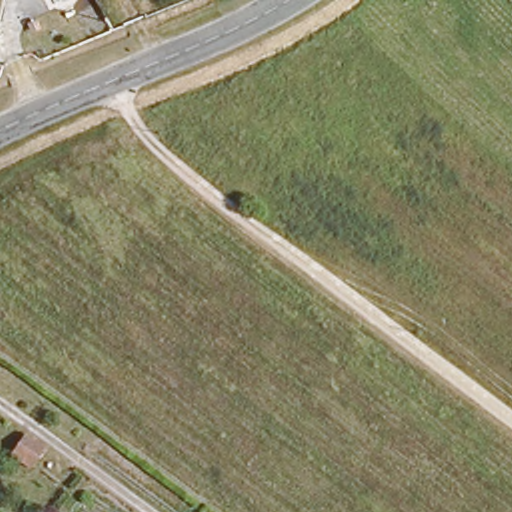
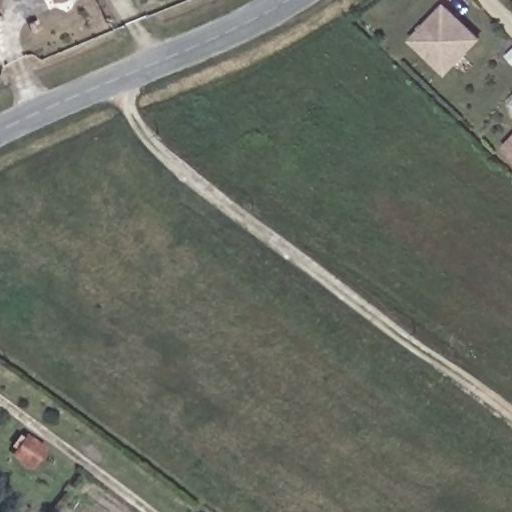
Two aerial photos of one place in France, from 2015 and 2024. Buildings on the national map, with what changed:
new [(449,76),(411,42),(445,5),(482,39),(449,76)]
new [(503,147),(512,138),(512,155),(503,147)]

